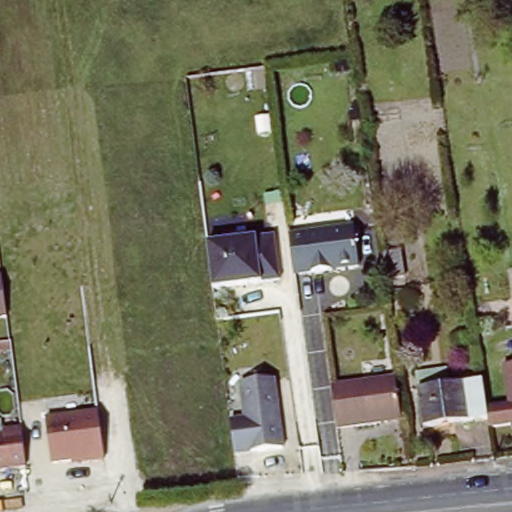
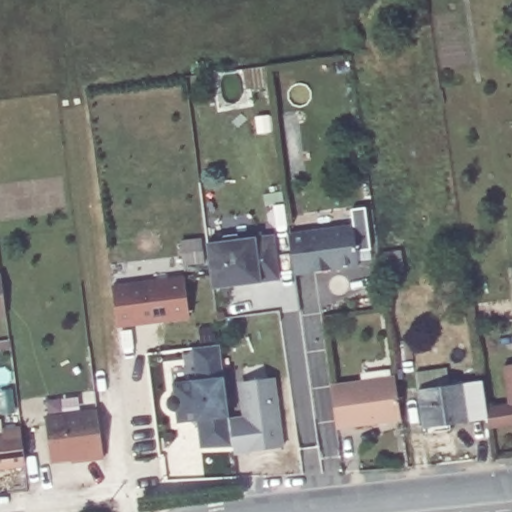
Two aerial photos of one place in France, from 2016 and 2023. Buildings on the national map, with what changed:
unchanged [(289,234),(354,226),(359,266),(294,274),(289,234)]
unchanged [(202,243),(269,235),(275,279),(208,288),(202,243)]
unchanged [(384,252),(400,250),(404,277),(389,279),(384,252)]
unchanged [(7,315),(0,315),(0,274),(2,274),(7,315)]
new [(118,327),(113,285),(184,277),(190,317),(118,327)]
new [(233,446),(200,448),(198,420),(177,422),(176,412),(170,412),(167,408),(165,403),(167,398),(170,396),(174,395),(172,382),(192,380),(195,379),(192,348),(220,345),(224,376),(229,416),(230,420),(233,446)]
unchanged [(504,425),(501,406),(510,404),(504,366),(512,364),(512,424),(504,425)]
unchanged [(424,427),(415,373),(447,369),(449,385),(482,380),(487,418),(424,427)]
unchanged [(234,453),(230,420),(245,417),(241,388),(247,381),(274,377),(282,447),(234,453)]
unchanged [(331,386),(395,377),(401,419),(337,428),(331,386)]
unchanged [(97,410),(103,459),(72,463),(72,460),(52,463),(45,417),(97,410)]
unchanged [(0,468),(0,430),(16,427),(21,465),(0,468)]

